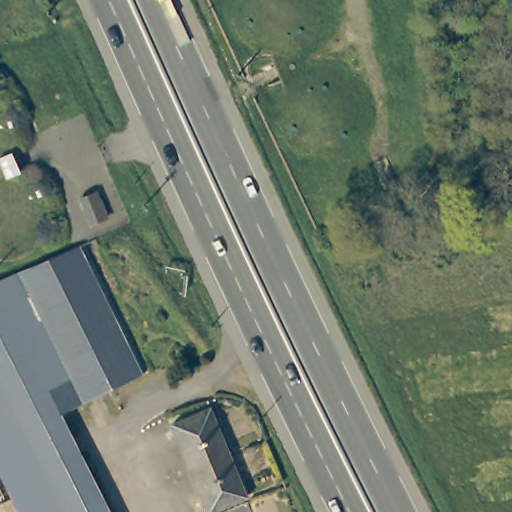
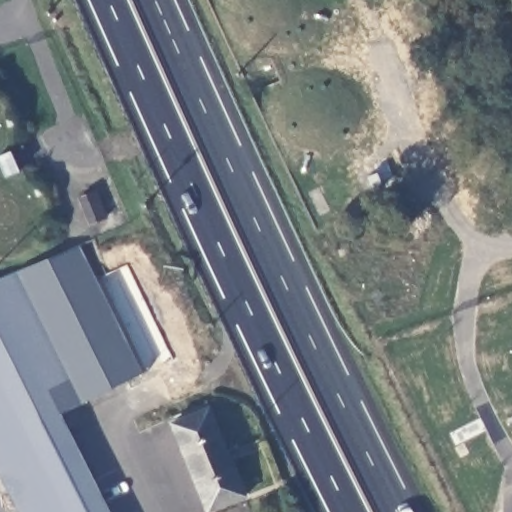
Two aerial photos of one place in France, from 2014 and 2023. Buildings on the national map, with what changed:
unchanged [(61,417),(111,512),(22,512),(0,468),(0,282),(9,278),(80,247),(144,372),(61,417)]
unchanged [(245,493),(207,509),(171,423),(209,407),(245,493)]
unchanged [(252,512),(218,512),(247,501),(252,512)]

